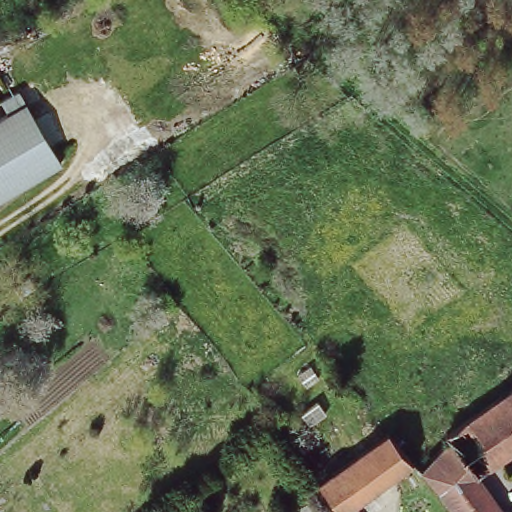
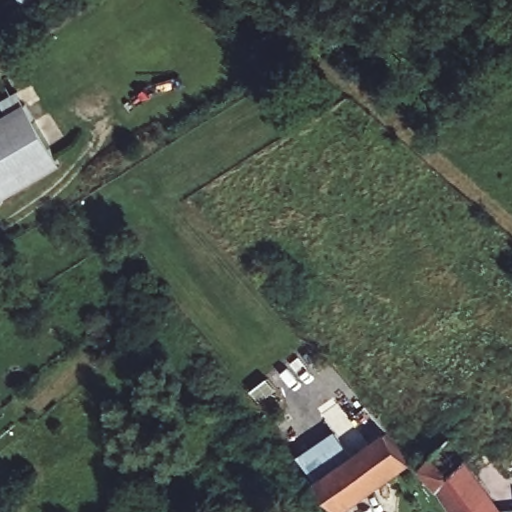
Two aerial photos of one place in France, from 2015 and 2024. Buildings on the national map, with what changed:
unchanged [(8,96),(23,87),(27,95),(30,99),(68,166),(0,206),(0,116),(15,107),(13,104),(8,96)]
demolished [(512,391),(512,447),(477,472),(452,438),(448,435),(512,391)]
unchanged [(409,462),(346,507),(349,512),(336,512),(312,482),(382,432),(409,462)]
unchanged [(427,470),(446,445),(452,438),(477,472),(509,506),(512,506),(512,512),(460,512),(460,511),(445,491),(427,470)]

